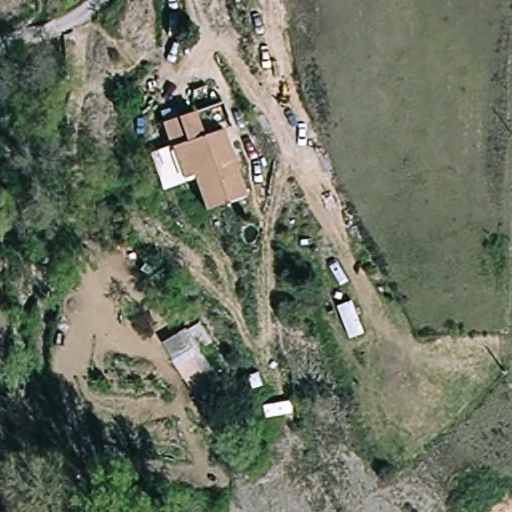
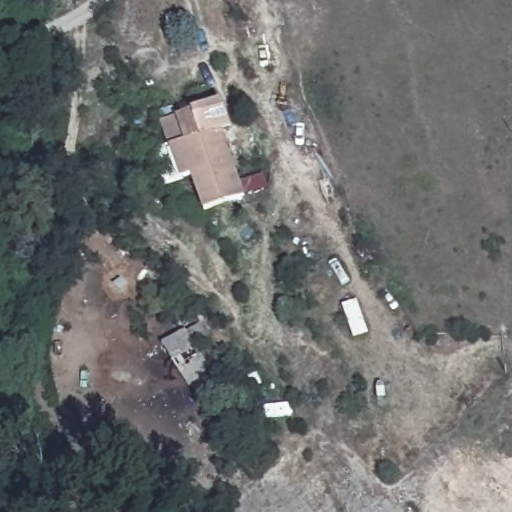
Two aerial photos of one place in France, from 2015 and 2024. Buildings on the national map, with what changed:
unchanged [(192,110),(201,134),(221,126),(246,191),(202,208),(190,176),(184,178),(172,148),(171,148),(161,122),(192,110)]
unchanged [(186,329),(187,330),(203,321),(212,342),(200,351),(212,375),(192,393),(175,366),(162,343),(186,329)]

